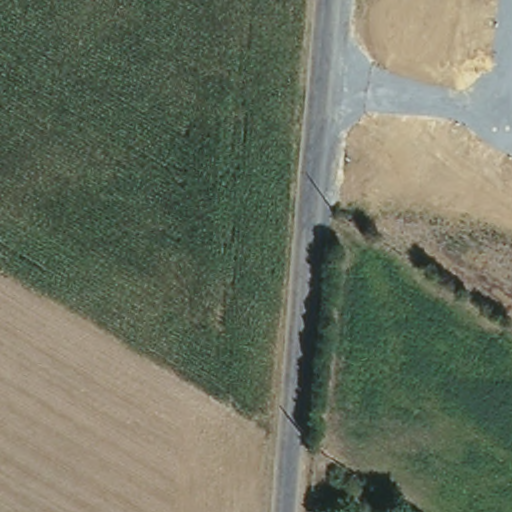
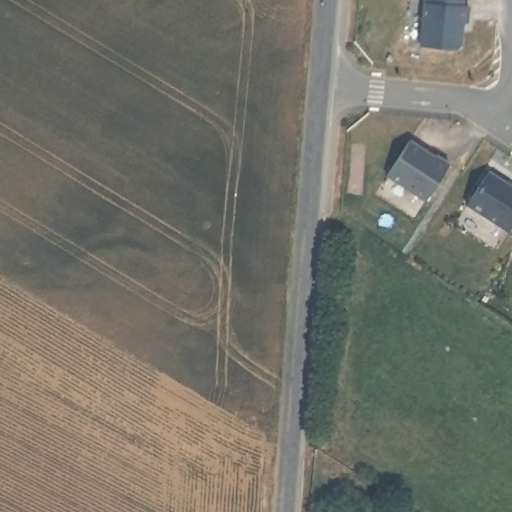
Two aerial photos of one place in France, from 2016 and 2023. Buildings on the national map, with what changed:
new [(464,0),(463,6),(471,7),(470,22),(465,22),(463,42),(456,47),(420,46),(422,0),(464,0)]
new [(407,138),(431,154),(433,152),(446,161),(422,198),(384,173),(407,138)]
new [(504,181),(512,186),(512,187),(510,189),(512,190),(512,219),(505,230),(464,204),(486,169),(504,181)]

